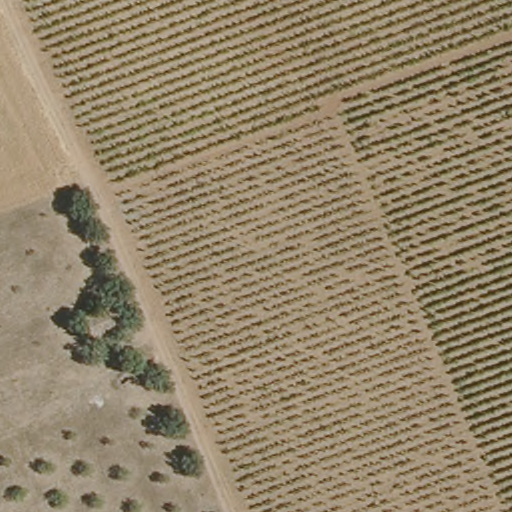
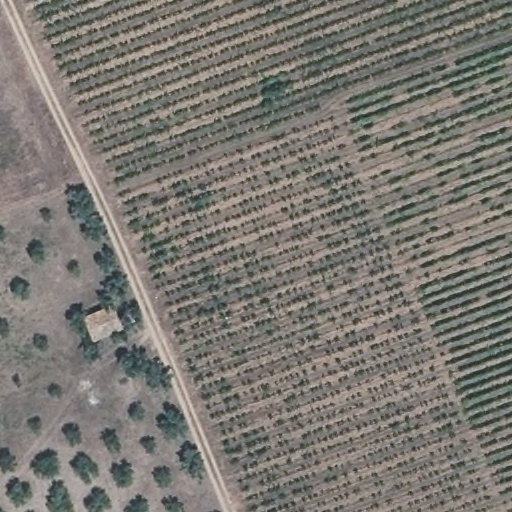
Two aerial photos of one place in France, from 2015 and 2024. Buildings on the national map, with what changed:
unchanged [(108,302),(118,327),(86,337),(78,314),(108,302)]

